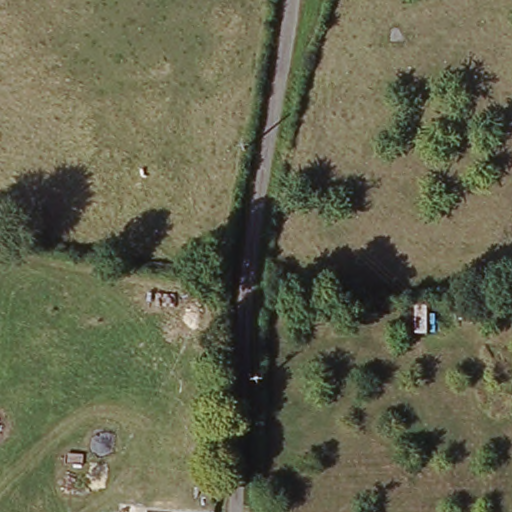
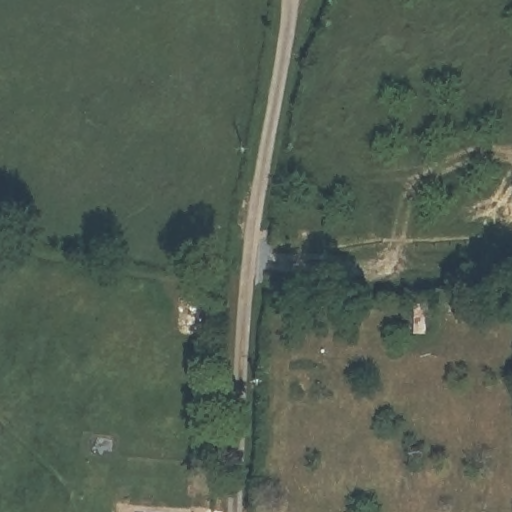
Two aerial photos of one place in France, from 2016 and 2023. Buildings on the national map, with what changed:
[]

